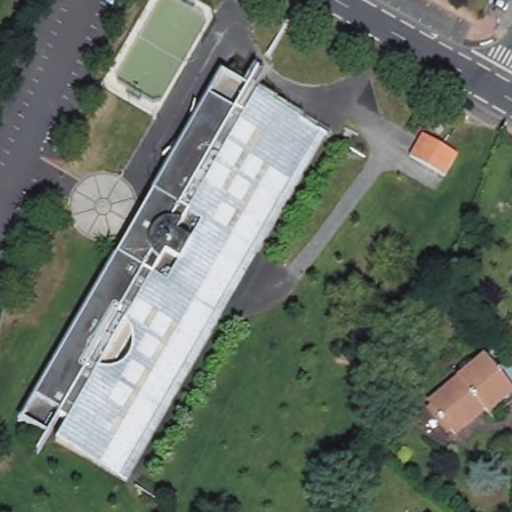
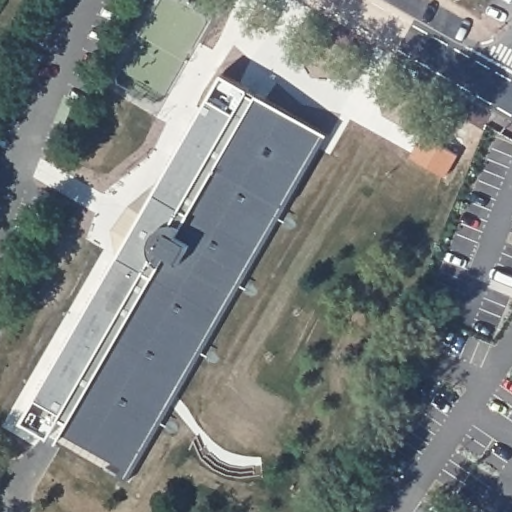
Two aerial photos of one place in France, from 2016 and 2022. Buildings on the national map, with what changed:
unchanged [(72,417),(62,412),(46,440),(16,424),(79,314),(120,241),(131,220),(132,219),(169,155),(164,152),(177,133),(184,116),(189,118),(214,74),(244,91),(231,111),(240,116),(251,95),(314,130),(322,135),(130,475),(125,484),(56,445),(61,436),(72,417)]
unchanged [(463,151),(451,172),(417,153),(430,130),(463,151)]
demolished [(440,391),(452,381),(450,379),(476,357),(507,392),(481,415),(476,408),(463,419),(465,420),(448,435),(421,404),(438,389),(440,391)]

